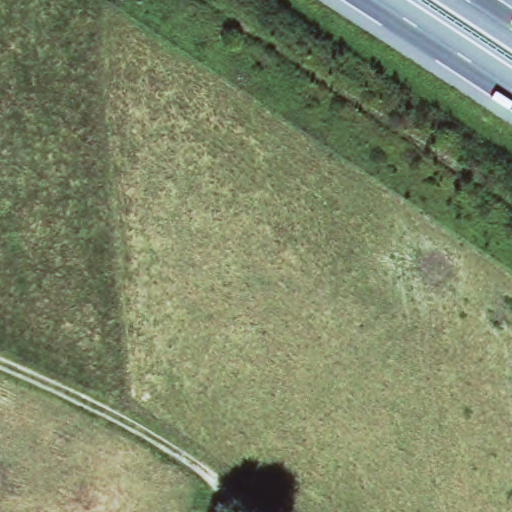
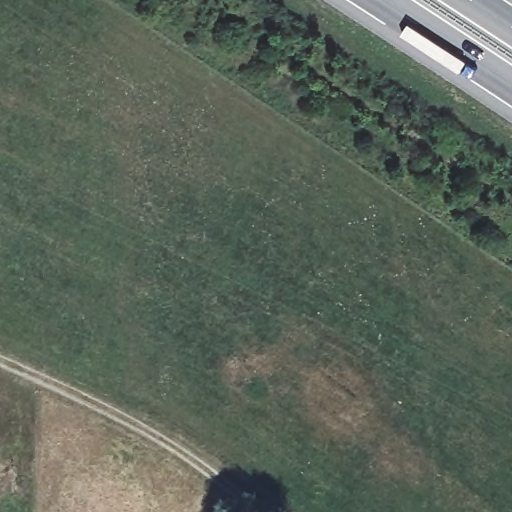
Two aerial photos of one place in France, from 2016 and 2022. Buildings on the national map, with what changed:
[]

